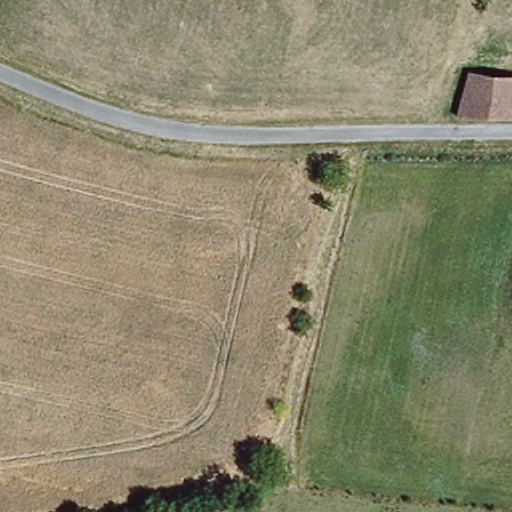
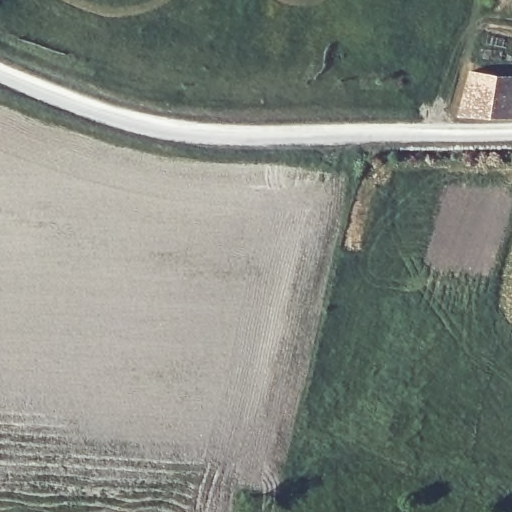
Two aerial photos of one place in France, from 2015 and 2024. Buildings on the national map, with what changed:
unchanged [(470,68),(512,74),(512,118),(455,113),(470,68)]

